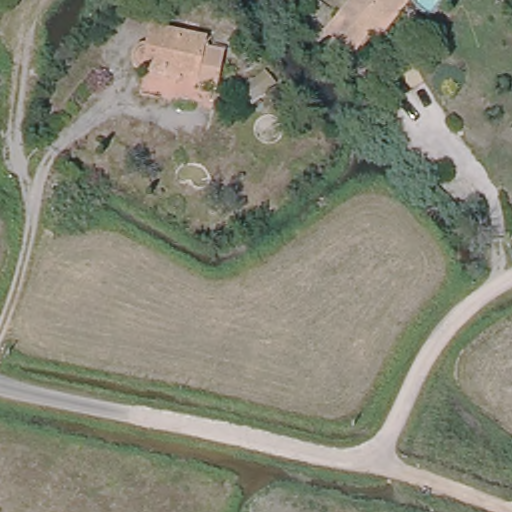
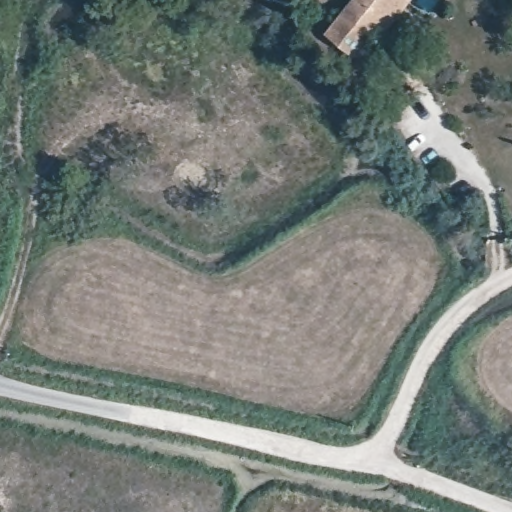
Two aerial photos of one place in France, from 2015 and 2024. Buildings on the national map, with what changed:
unchanged [(325,30),(348,2),(345,0),(407,0),(402,7),(386,27),(379,38),(369,30),(350,52),(325,30)]
demolished [(175,70),(173,76),(140,68),(135,63),(132,58),(133,49),(137,44),(143,41),(149,42),(152,26),(206,36),(205,44),(222,47),(215,89),(196,86),(198,75),(181,71),(175,70)]
unchanged [(57,217),(52,215),(50,210),(52,205),(56,203),(60,205),(62,209),(61,213),(57,217)]

